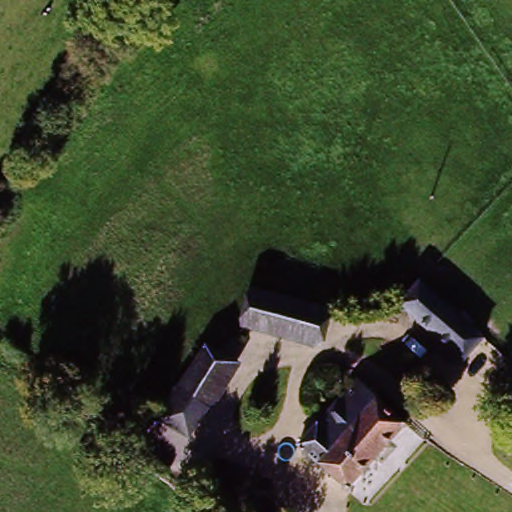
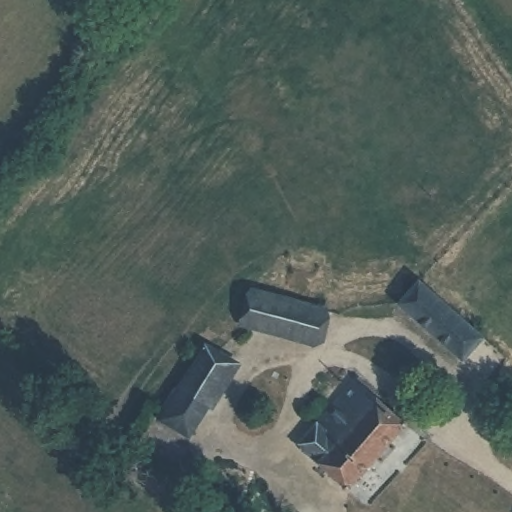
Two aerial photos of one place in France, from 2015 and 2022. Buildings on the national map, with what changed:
unchanged [(468,360),(400,302),(413,285),(482,345),(468,360)]
unchanged [(320,312),(312,336),(245,315),(252,291),(320,312)]
unchanged [(235,368),(188,441),(153,421),(199,351),(235,368)]
unchanged [(371,395),(419,440),(357,505),(310,459),(371,395)]

